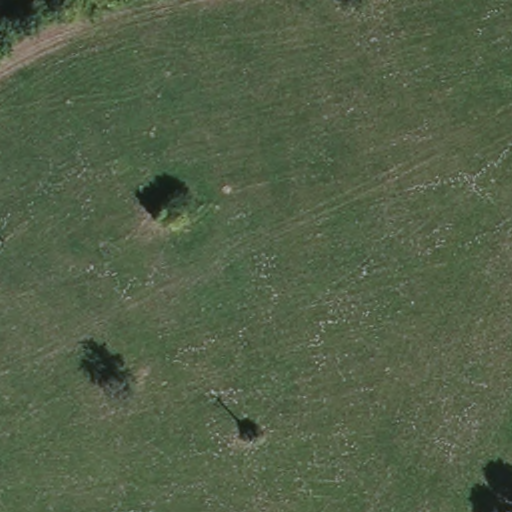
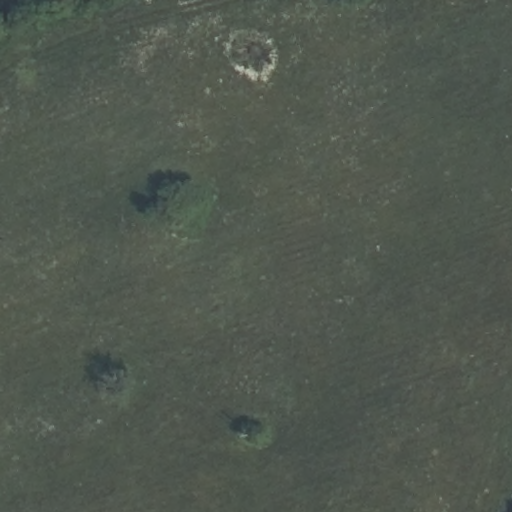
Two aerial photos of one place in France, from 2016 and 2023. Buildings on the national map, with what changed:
unchanged [(180,231),(152,216),(162,198),(190,211),(180,231)]

